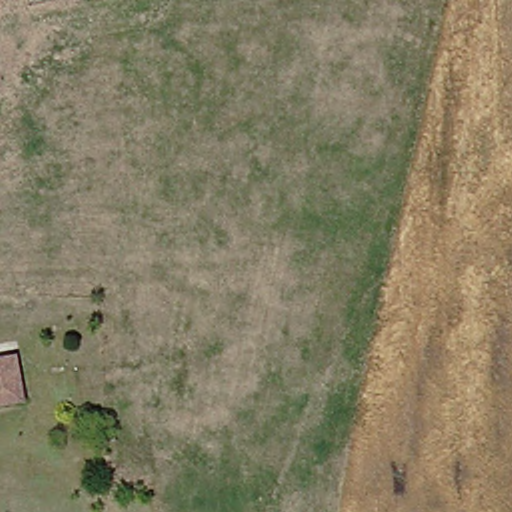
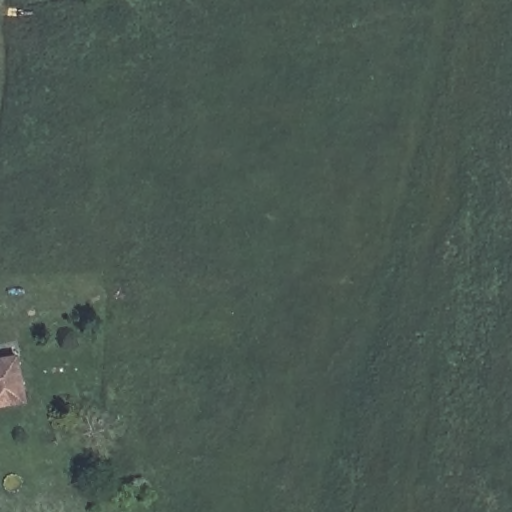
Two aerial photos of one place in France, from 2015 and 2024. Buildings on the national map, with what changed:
unchanged [(20,357),(29,404),(0,409),(0,360),(20,357)]

